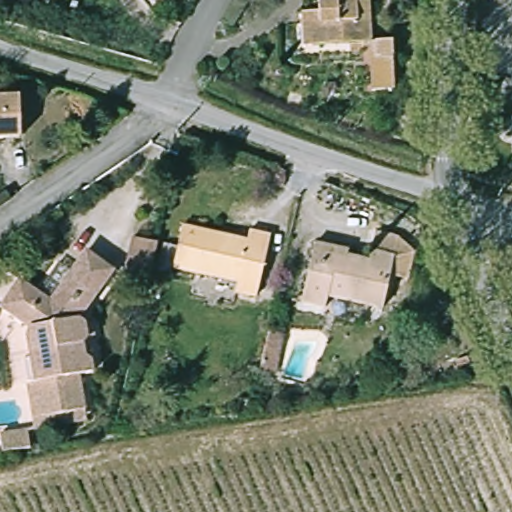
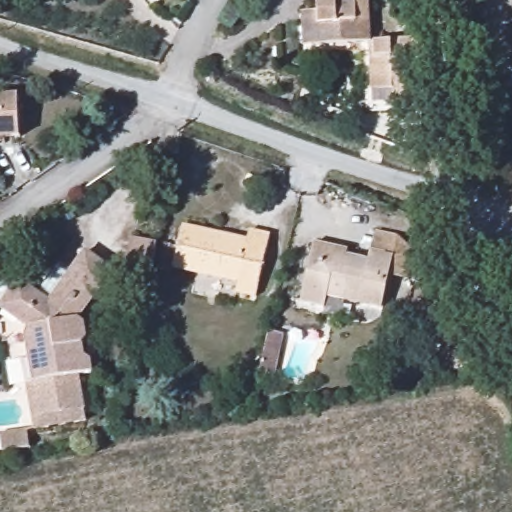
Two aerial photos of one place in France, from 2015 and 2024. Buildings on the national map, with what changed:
unchanged [(320,35),(360,36),(358,49),(306,49),(305,0),(320,0),(320,35)]
unchanged [(326,0),(374,0),(374,37),(371,37),(360,36),(320,35),(320,0),(326,0)]
unchanged [(397,38),(396,89),(371,88),(371,37),(397,38)]
unchanged [(16,134),(0,135),(0,97),(15,96),(16,134)]
unchanged [(256,241),(259,231),(281,236),(268,297),(245,293),(245,284),(183,272),(194,228),(256,241)]
unchanged [(315,244),(369,254),(374,235),(404,238),(418,253),(413,285),(394,282),(388,319),(298,305),(315,244)]
unchanged [(150,282),(125,278),(135,237),(159,242),(150,282)]
unchanged [(43,302),(84,253),(115,275),(83,319),(93,328),(95,341),(90,349),(91,360),(100,363),(103,380),(88,384),(96,416),(46,429),(25,362),(33,358),(28,338),(0,319),(0,306),(16,285),(43,302)]

